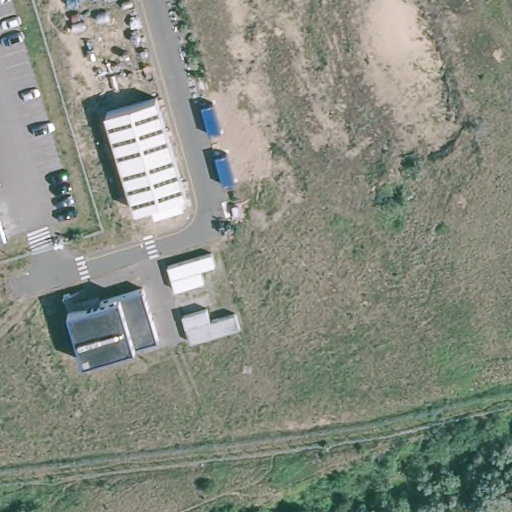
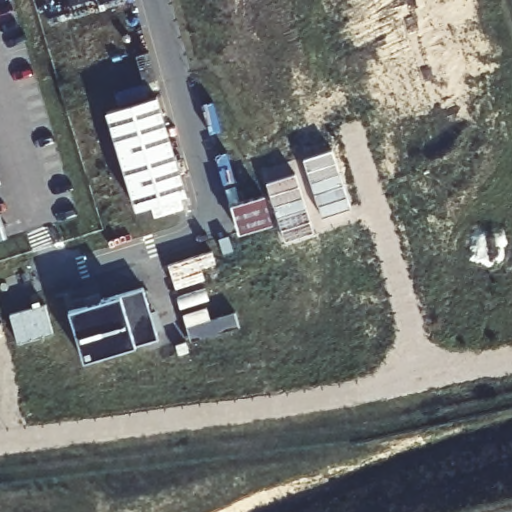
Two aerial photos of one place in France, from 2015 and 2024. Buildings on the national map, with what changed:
unchanged [(158,95),(187,193),(135,209),(108,110),(158,95)]
new [(351,207),(323,216),(302,157),(331,149),(351,207)]
new [(316,230),(285,241),(263,181),(296,171),(316,230)]
new [(272,221),(241,229),(232,202),(265,194),(272,221)]
unchanged [(70,310),(121,295),(144,287),(159,336),(135,344),(84,360),(70,310)]

